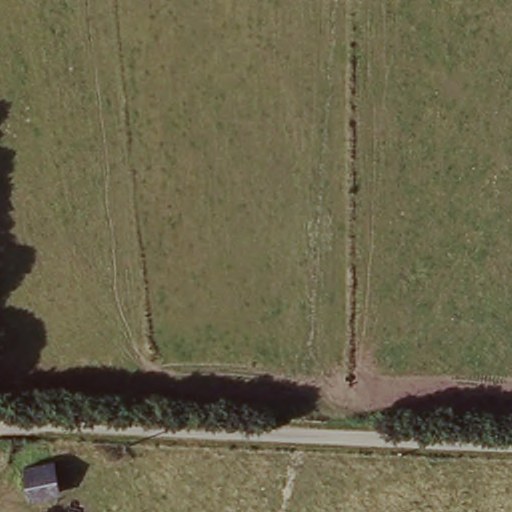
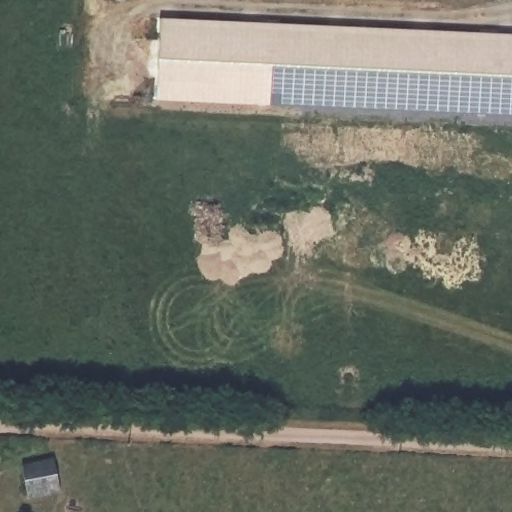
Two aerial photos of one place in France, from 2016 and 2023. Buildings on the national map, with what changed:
new [(512,33),(512,138),(166,132),(167,24),(512,33)]
unchanged [(53,469),(57,494),(31,497),(27,473),(53,469)]

